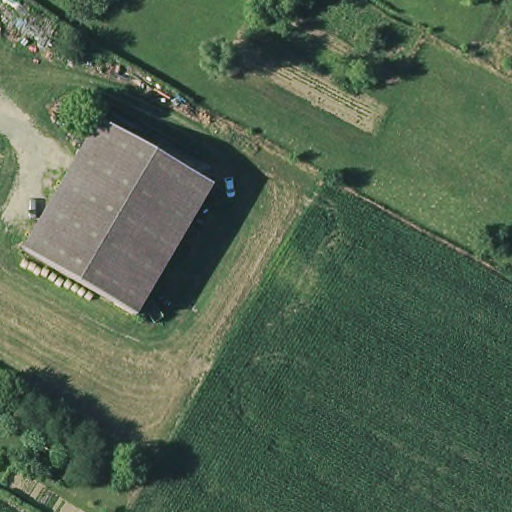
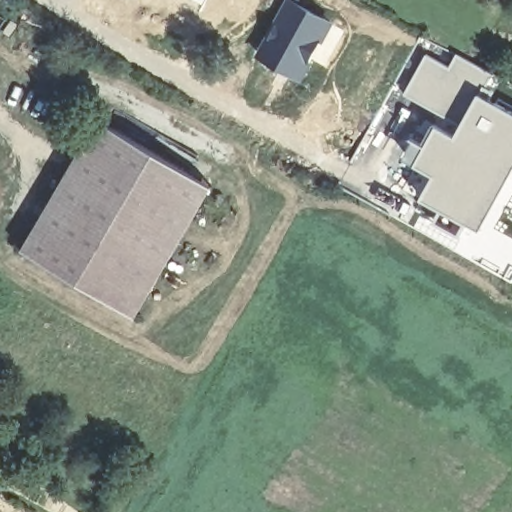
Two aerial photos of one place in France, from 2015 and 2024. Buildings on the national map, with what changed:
new [(335,25),(304,85),(253,57),(285,0),(290,0),(335,25)]
new [(450,67),(457,55),(501,79),(493,101),(479,94),(456,136),(436,125),(441,116),(402,95),(425,55),(450,67)]
new [(493,101),(512,111),(512,174),(482,230),(419,200),(432,176),(414,167),(415,165),(404,160),(414,141),(425,147),(436,125),(456,136),(479,94),(493,101)]
unchanged [(99,122),(209,189),(156,277),(132,317),(21,249),(44,212),(99,122)]

